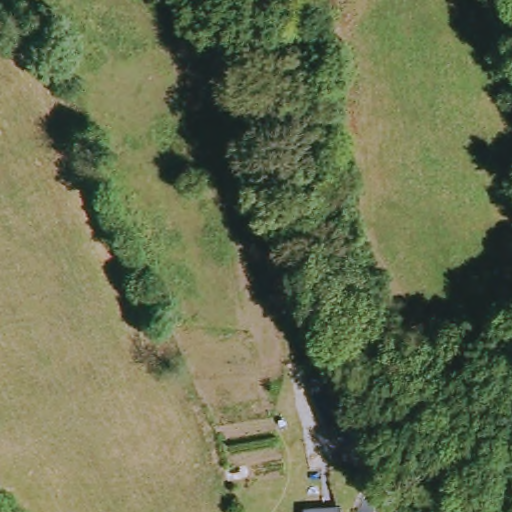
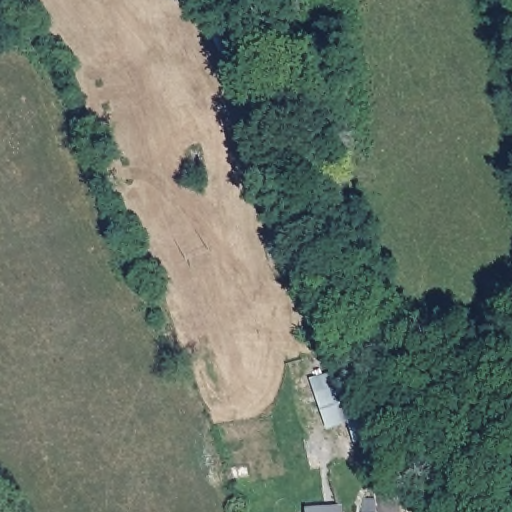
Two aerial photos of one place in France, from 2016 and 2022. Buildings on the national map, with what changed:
unchanged [(374,438),(351,446),(335,404),(359,396),(374,438)]

